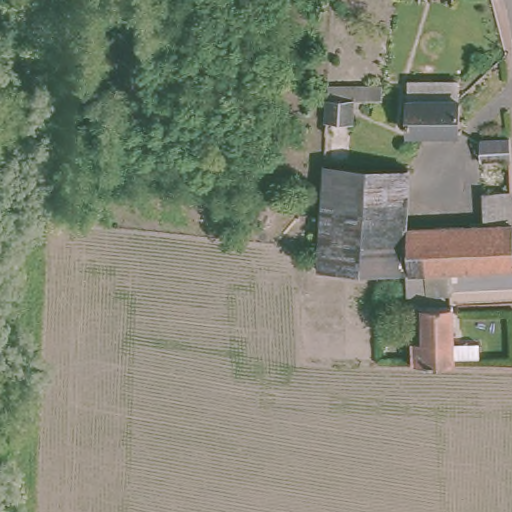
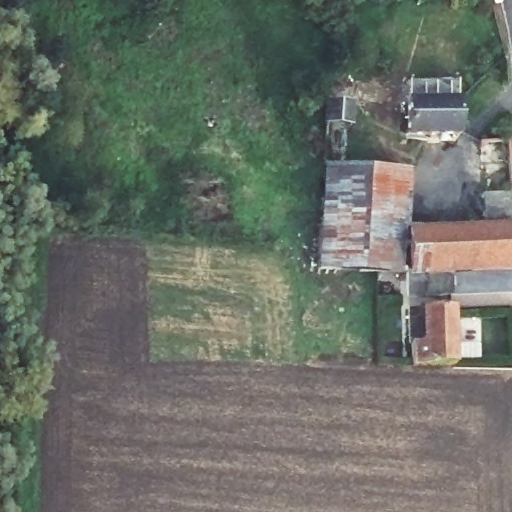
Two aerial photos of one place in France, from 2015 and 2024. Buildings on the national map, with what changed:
unchanged [(408,84),(457,86),(457,105),(456,137),(407,135),(407,103),(408,84)]
unchanged [(380,91),(379,104),(350,103),(349,141),(323,142),(325,88),(380,91)]
unchanged [(408,154),(407,230),(482,228),(478,141),(508,140),(512,215),(512,270),(448,272),(405,274),(376,272),(317,270),(323,142),(349,141),(348,149),(408,154)]
unchanged [(448,277),(450,296),(407,297),(405,274),(448,275),(448,277)]
unchanged [(409,311),(422,310),(450,310),(452,368),(438,367),(411,366),(410,346),(407,346),(407,339),(410,339),(409,311)]

